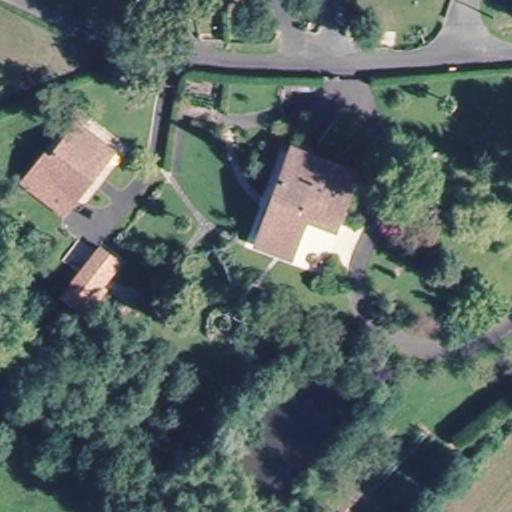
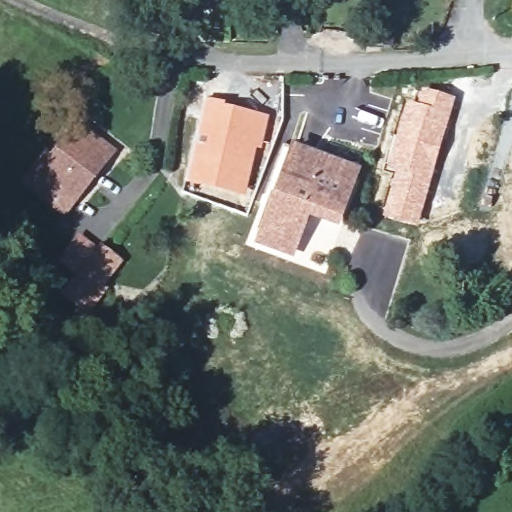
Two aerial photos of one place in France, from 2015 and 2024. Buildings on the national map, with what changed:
new [(394,173),(384,169),(406,100),(415,103),(420,86),(455,97),(418,225),(381,216),(394,173)]
new [(205,99),(269,114),(260,149),(257,149),(245,196),(185,182),(205,99)]
unchanged [(102,157),(60,222),(27,198),(13,190),(36,155),(50,165),(72,135),(102,157)]
unchanged [(332,232),(299,220),(282,263),(253,251),(287,158),(351,180),(332,232)]
unchanged [(116,264),(97,288),(105,294),(88,319),(61,299),(98,249),(116,264)]

